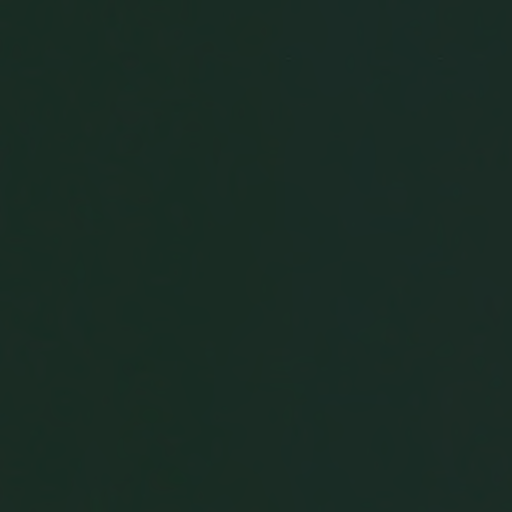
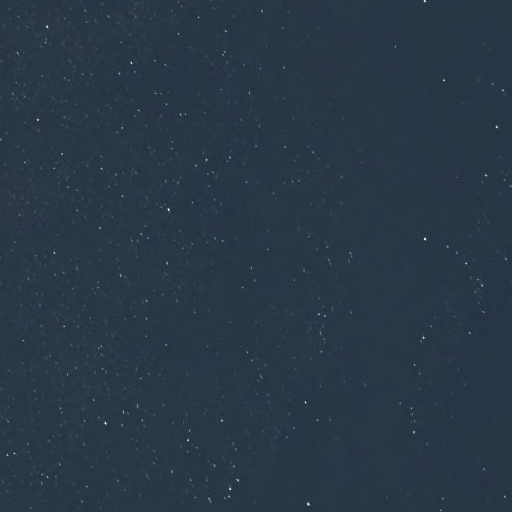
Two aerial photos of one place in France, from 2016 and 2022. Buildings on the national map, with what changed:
[]

